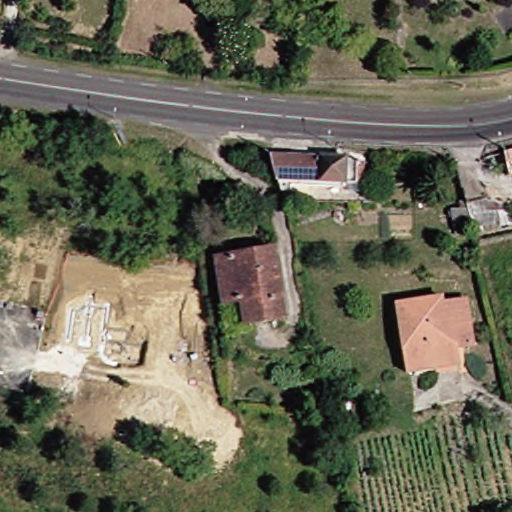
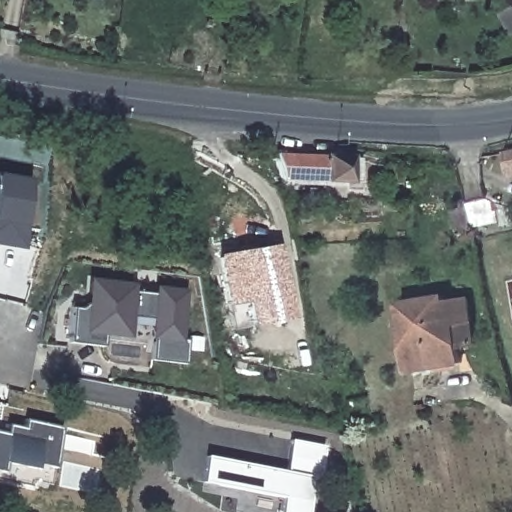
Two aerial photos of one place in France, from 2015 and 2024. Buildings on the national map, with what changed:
unchanged [(265,151),(359,160),(355,188),(339,187),(339,181),(288,176),(286,186),(273,185),(265,151)]
unchanged [(505,153),(512,151),(512,176),(511,176),(505,153)]
new [(31,184),(19,253),(0,250),(0,178),(31,184)]
unchanged [(458,207),(457,201),(463,200),(464,203),(491,196),(493,206),(491,206),(495,224),(469,227),(469,225),(455,228),(450,209),(458,207)]
unchanged [(228,332),(227,324),(217,255),(230,254),(229,244),(239,243),(240,253),(270,250),(280,318),(255,321),(255,329),(228,332)]
new [(135,284),(134,292),(155,294),(155,287),(187,291),(182,341),(187,341),(185,364),(150,360),(154,317),(131,315),(128,338),(104,336),(102,347),(68,344),(71,309),(79,310),(86,304),(89,279),(135,284)]
unchanged [(399,361),(391,302),(434,297),(435,302),(460,299),(463,322),(466,344),(448,346),(451,364),(421,368),(400,371),(399,361)]
new [(15,435),(17,427),(56,436),(47,477),(26,473),(21,496),(0,491),(0,432),(15,435)]
new [(198,458),(282,476),(289,442),(324,449),(311,512),(243,512),(246,497),(192,486),(198,458)]

